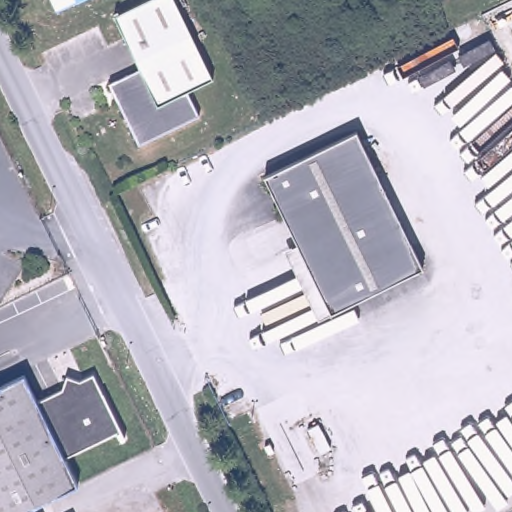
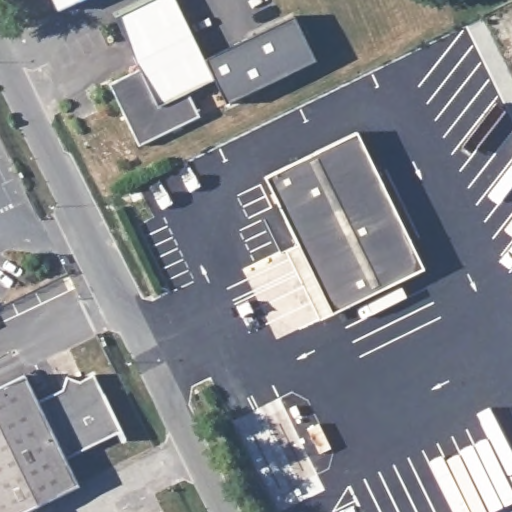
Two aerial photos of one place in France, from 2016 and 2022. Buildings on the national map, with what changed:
unchanged [(75,0),(64,6),(61,0),(75,0)]
unchanged [(176,0),(219,82),(190,96),(202,122),(139,151),(110,87),(142,74),(114,21),(157,0),(176,0)]
new [(292,17),(315,61),(225,103),(215,84),(219,82),(206,58),(292,17)]
unchanged [(306,244),(274,179),(330,151),(362,135),(427,269),(347,308),(340,312),(306,244)]
unchanged [(327,318),(295,252),(306,244),(340,312),(327,318)]
unchanged [(35,400),(55,393),(64,375),(80,381),(95,372),(121,431),(66,459),(79,487),(35,508),(27,512),(0,512),(0,390),(26,377),(35,400)]
unchanged [(35,508),(37,512),(27,512),(35,508)]

